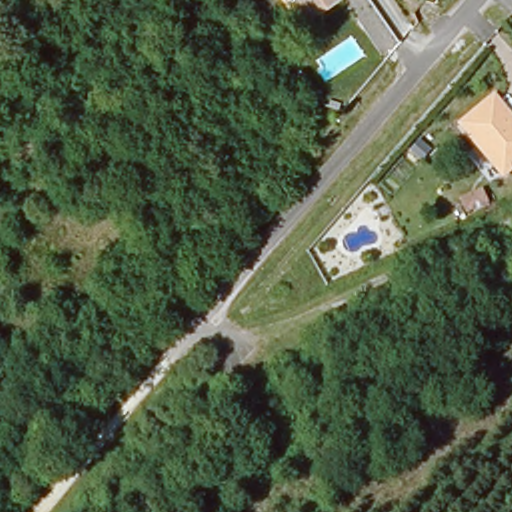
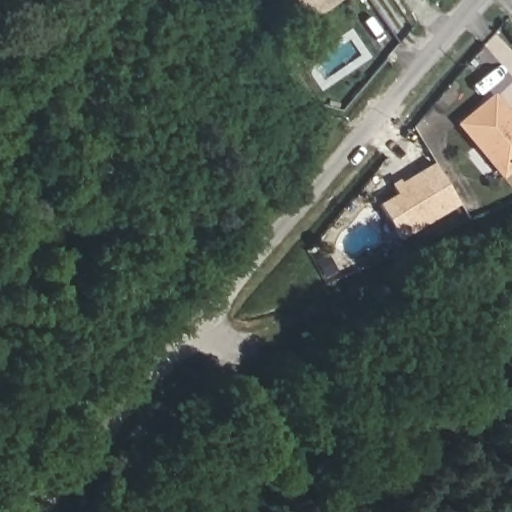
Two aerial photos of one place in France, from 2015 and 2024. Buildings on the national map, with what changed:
unchanged [(309,15),(299,0),(333,0),(309,15)]
unchanged [(483,99),(512,128),(512,170),(505,176),(455,128),(483,99)]
new [(402,190),(398,183),(431,163),(457,205),(401,240),(379,203),(402,190)]

